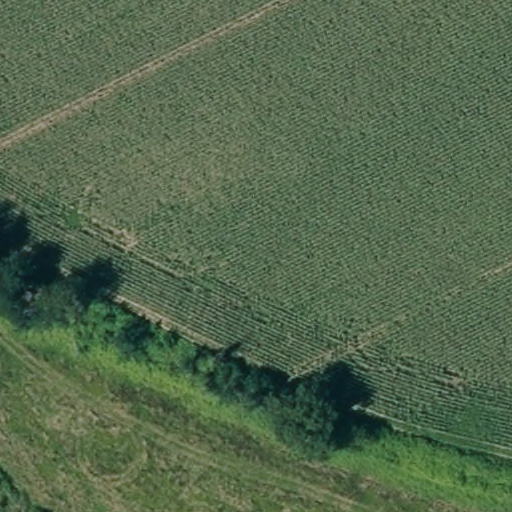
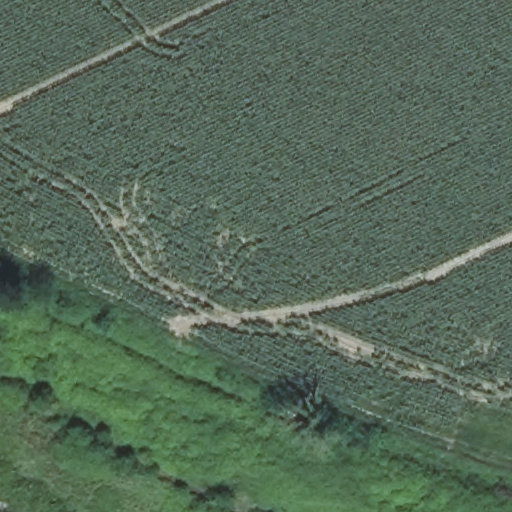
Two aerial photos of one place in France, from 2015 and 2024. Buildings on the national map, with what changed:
[]

